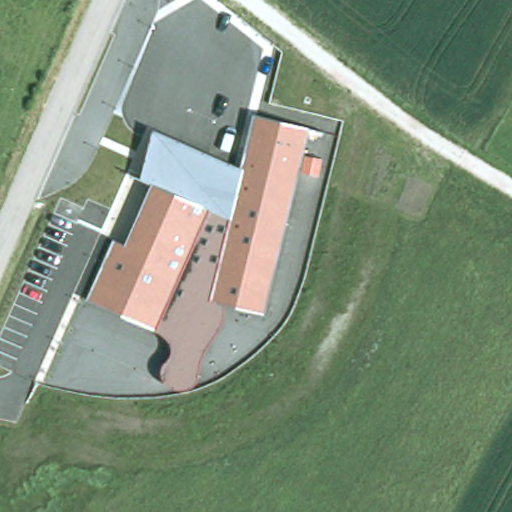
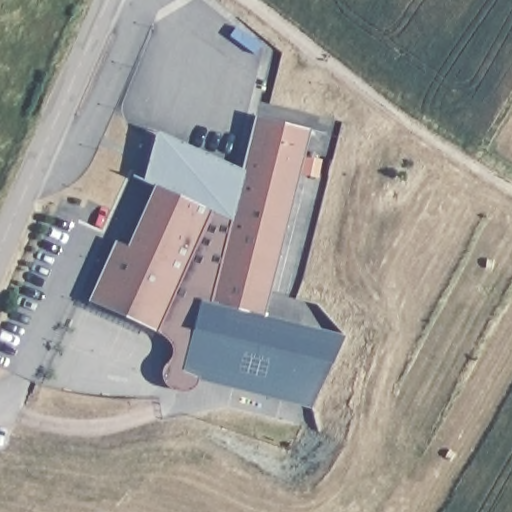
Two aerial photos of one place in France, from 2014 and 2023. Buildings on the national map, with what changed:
unchanged [(253,115),(309,127),(264,315),(224,306),(224,315),(221,326),(214,336),(203,352),(200,362),(198,375),(197,383),(191,389),(183,391),(174,390),(167,386),(162,379),(161,373),(163,366),(167,361),(171,355),(172,349),(169,343),(164,337),(156,332),(88,301),(115,240),(126,245),(153,186),(142,181),(155,130),(242,168),(253,115)]
new [(200,362),(203,352),(214,336),(221,326),(224,315),(224,306),(264,315),(347,335),(312,407),(197,379),(198,375),(200,362)]

